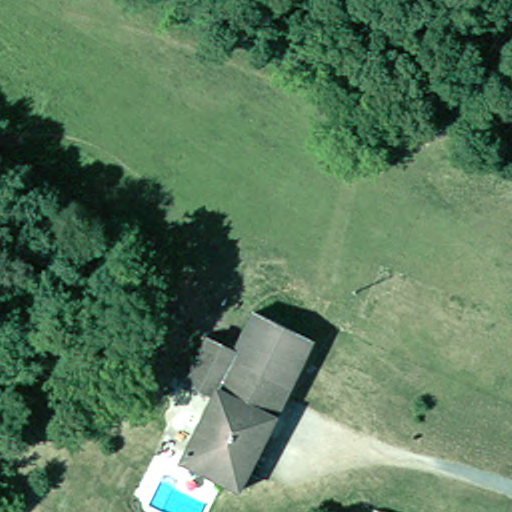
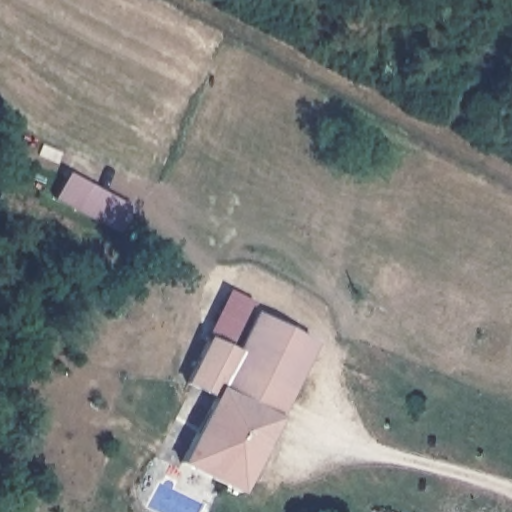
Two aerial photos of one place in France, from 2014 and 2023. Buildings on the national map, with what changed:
new [(132,206),(119,232),(53,198),(67,172),(132,206)]
new [(204,334),(227,289),(250,299),(247,307),(230,349),(204,334)]
unchanged [(242,488),(178,456),(207,389),(182,379),(197,330),(230,349),(247,307),(312,343),(242,488)]

